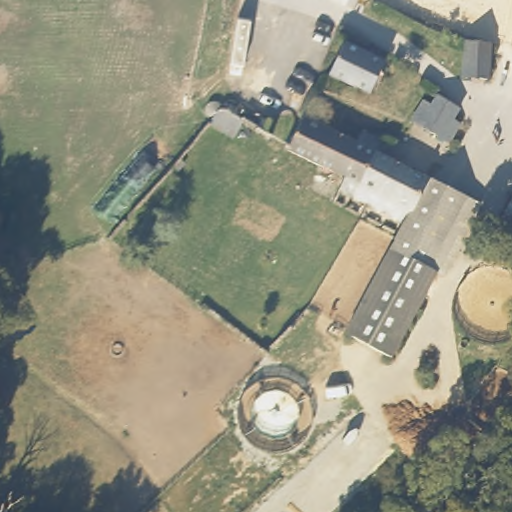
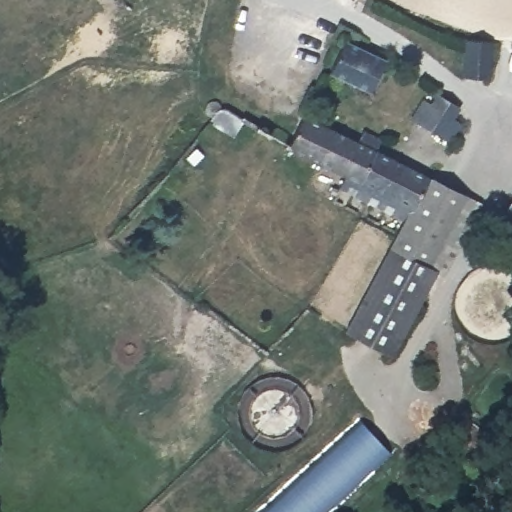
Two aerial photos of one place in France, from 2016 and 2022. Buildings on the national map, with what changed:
unchanged [(487,41),(486,80),(460,79),(463,39),(487,41)]
unchanged [(386,62),(373,93),(332,75),(346,42),(386,62)]
unchanged [(462,109),(456,119),(463,122),(451,142),(432,132),(414,121),(417,114),(425,100),(434,104),(438,95),(462,109)]
unchanged [(247,120),(236,139),(208,126),(210,101),(247,120)]
unchanged [(301,112),(355,136),(359,127),(377,135),(372,146),(415,170),(425,175),(397,217),(334,185),(340,172),(283,145),(286,139),(301,112)]
unchanged [(398,217),(397,217),(425,175),(477,200),(438,271),(432,268),(388,353),(341,330),(398,217)]
unchanged [(512,202),(512,226),(504,222),(512,202)]
new [(362,421),(391,452),(326,512),(264,512),(362,421)]

